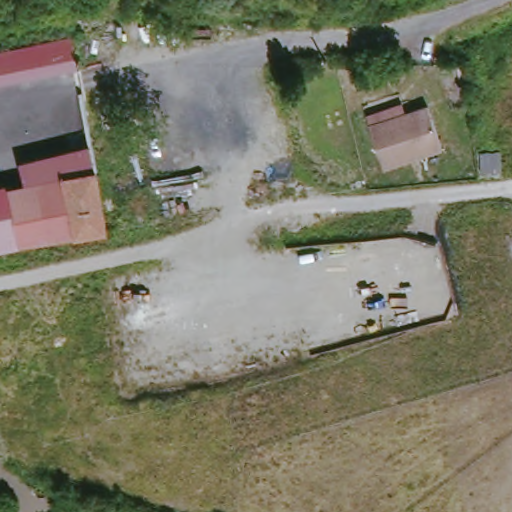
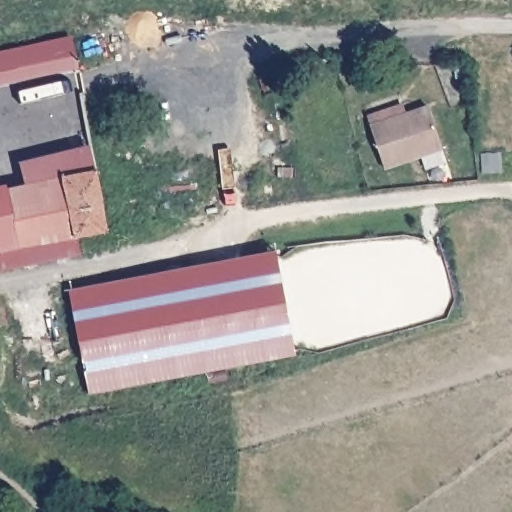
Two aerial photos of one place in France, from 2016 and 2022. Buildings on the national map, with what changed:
unchanged [(49,35),(45,23),(57,19),(60,33),(49,35)]
unchanged [(0,84),(0,50),(70,35),(77,68),(0,84)]
unchanged [(397,106),(400,116),(425,106),(441,150),(381,168),(366,116),(397,106)]
unchanged [(20,162),(90,147),(97,167),(34,181),(25,183),(20,162)]
unchanged [(0,251),(0,205),(5,204),(4,188),(97,167),(106,229),(0,251)]
unchanged [(4,188),(5,204),(0,205),(0,185),(2,184),(4,188)]
demolished [(102,202),(208,185),(212,211),(106,229),(102,202)]
new [(277,252),(295,355),(89,393),(70,292),(277,252)]

